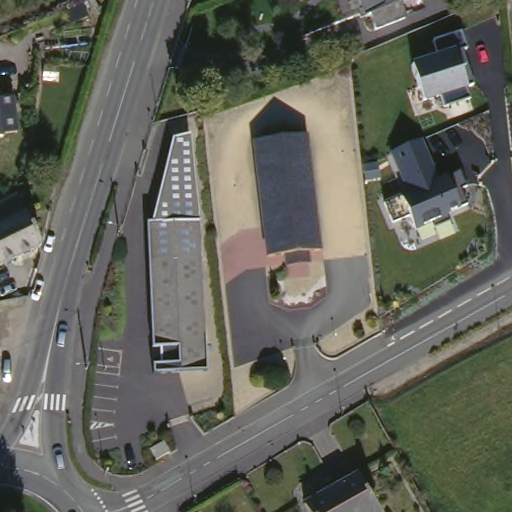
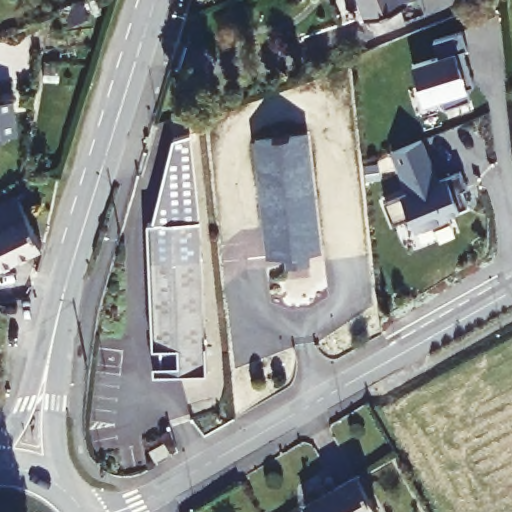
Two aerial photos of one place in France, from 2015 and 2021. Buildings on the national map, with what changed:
unchanged [(365,17),(359,0),(404,0),(405,2),(365,17)]
unchanged [(404,0),(421,0),(425,10),(406,17),(374,29),(370,16),(405,2),(404,0)]
unchanged [(88,2),(94,16),(75,24),(69,10),(88,2)]
unchanged [(412,62),(438,55),(433,39),(461,31),(467,48),(463,50),(474,84),(466,87),(470,99),(444,108),(440,97),(424,101),(412,62)]
unchanged [(17,133),(3,135),(3,139),(0,139),(0,99),(12,97),(17,133)]
unchanged [(283,267),(282,254),(262,257),(250,140),(302,134),(315,251),(303,252),(304,265),(283,267)]
unchanged [(408,216),(392,223),(384,202),(408,193),(389,152),(422,138),(439,179),(460,171),(466,187),(461,189),(468,205),(447,214),(449,222),(433,229),(431,224),(415,231),(408,216)]
unchanged [(152,352),(148,227),(152,227),(173,142),(189,140),(198,209),(205,375),(177,377),(153,378),(152,352)]
unchanged [(40,246),(0,265),(0,204),(17,196),(40,246)]
unchanged [(170,453),(155,462),(149,451),(163,442),(170,453)]
unchanged [(372,512),(306,512),(301,503),(352,475),(372,512)]

